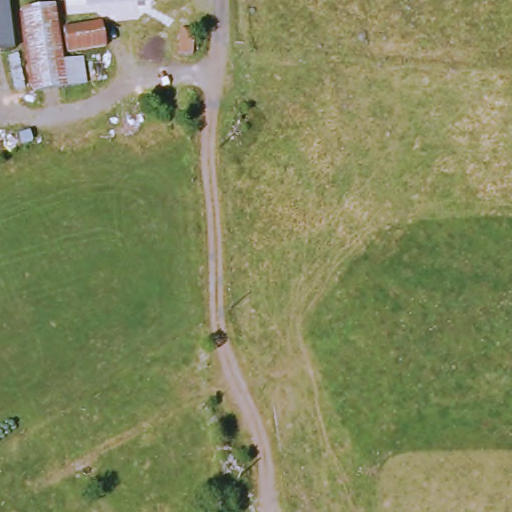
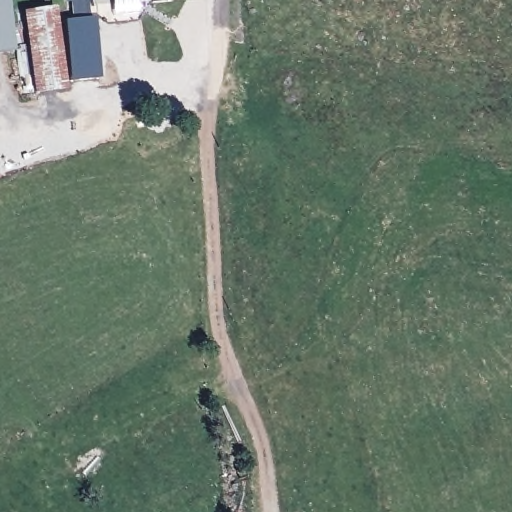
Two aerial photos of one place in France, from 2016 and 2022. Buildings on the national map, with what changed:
unchanged [(12,50),(0,52),(0,0),(5,0),(12,50)]
unchanged [(71,3),(71,0),(97,0),(71,3)]
unchanged [(77,88),(60,90),(30,95),(17,15),(46,11),(55,66),(73,64),(77,88)]
unchanged [(57,34),(95,27),(98,51),(61,57),(57,34)]
unchanged [(192,31),(192,55),(178,55),(178,31),(192,31)]

